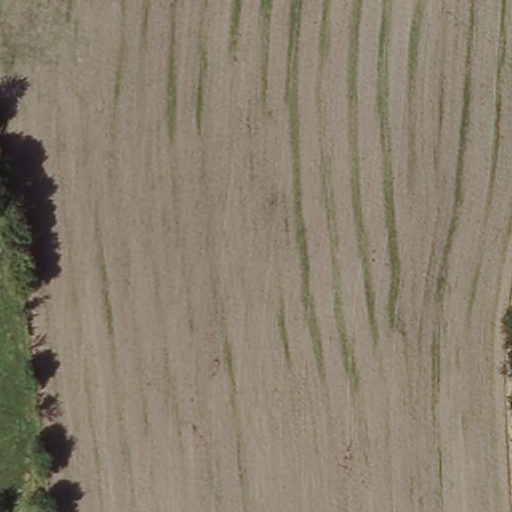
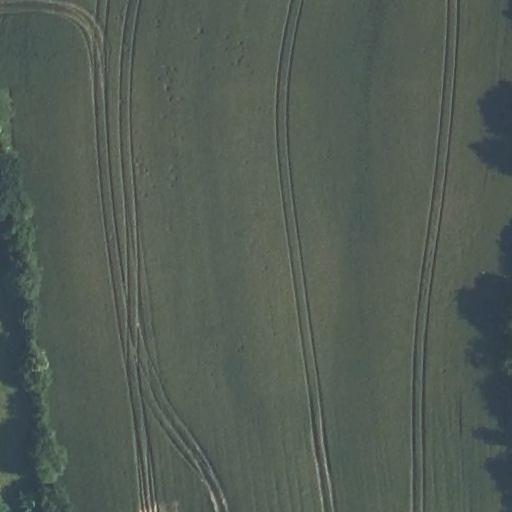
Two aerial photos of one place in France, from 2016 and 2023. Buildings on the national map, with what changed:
[]

